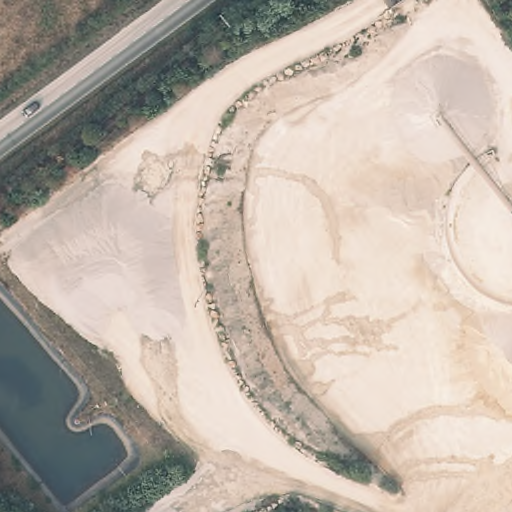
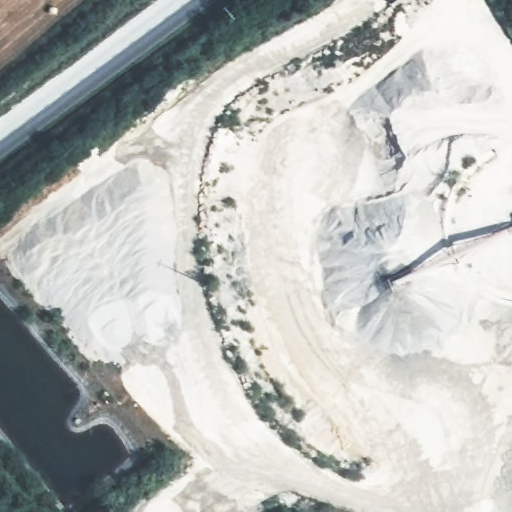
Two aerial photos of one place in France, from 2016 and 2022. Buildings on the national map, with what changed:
[]

